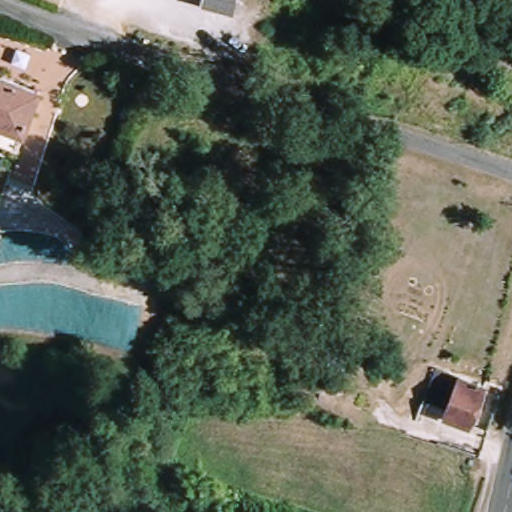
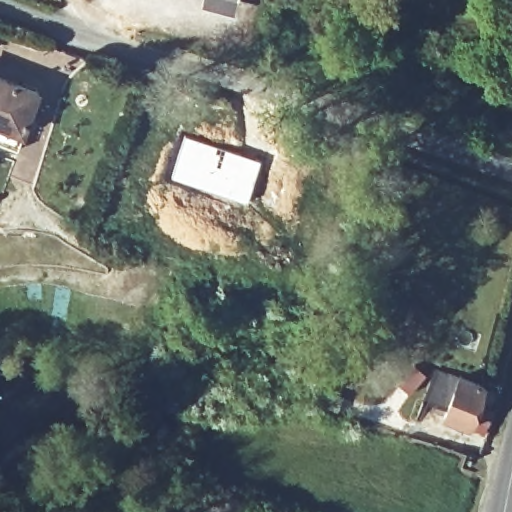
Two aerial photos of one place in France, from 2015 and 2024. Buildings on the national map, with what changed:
unchanged [(0,74),(34,85),(15,143),(0,138),(0,74)]
new [(184,136),(261,159),(248,202),(171,178),(184,136)]
unchanged [(451,407),(427,398),(439,366),(488,385),(474,423),(449,413),(451,407)]

